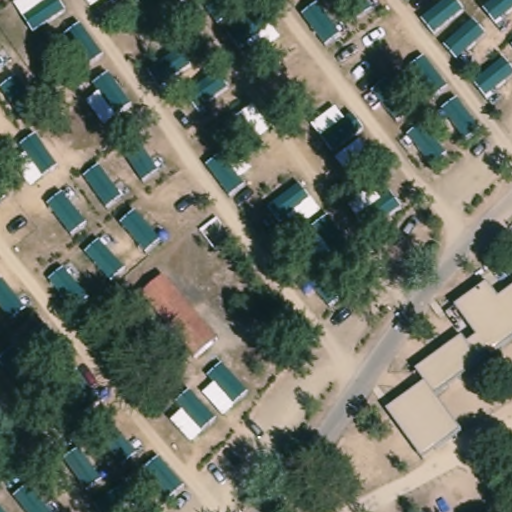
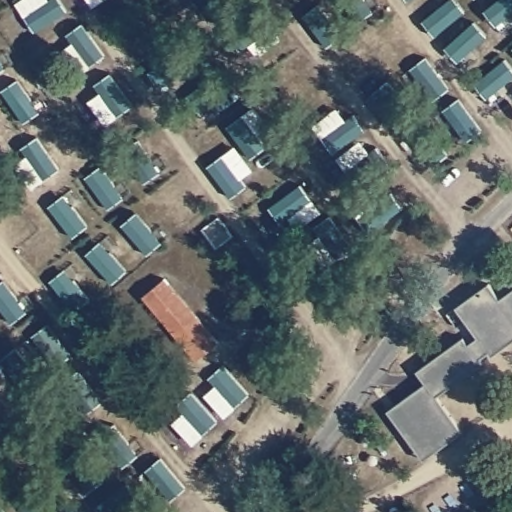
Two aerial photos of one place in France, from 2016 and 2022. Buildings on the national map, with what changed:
unchanged [(215,343),(191,366),(136,300),(159,280),(215,343)]
unchanged [(425,384),(416,370),(462,338),(466,343),(476,336),(455,306),(489,284),(498,297),(512,288),(512,341),(490,356),(485,352),(476,360),(479,365),(435,395),(461,432),(422,460),(387,410),(425,384)]

